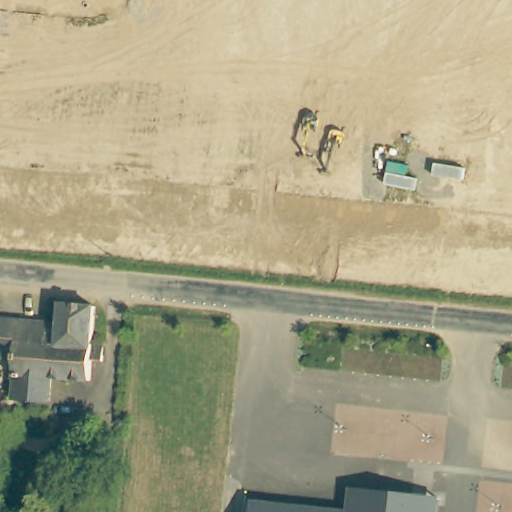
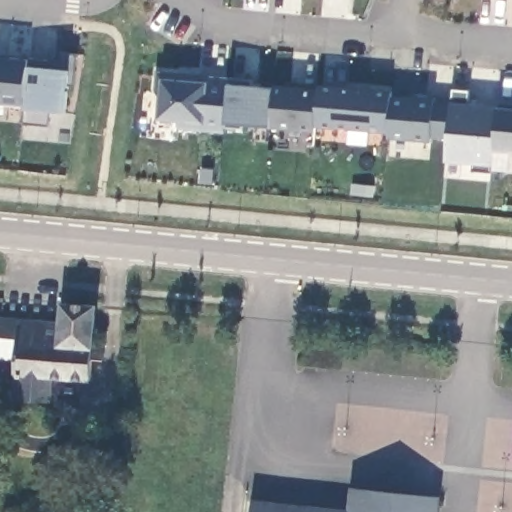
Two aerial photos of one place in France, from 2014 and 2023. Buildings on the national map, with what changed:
new [(61,61),(63,52),(80,55),(76,86),(68,86),(65,113),(54,112),(51,126),(26,124),(26,106),(24,106),(0,103),(0,56),(31,59),(61,61)]
new [(205,82),(203,75),(254,81),(257,86),(274,87),(275,84),(318,88),(320,84),(391,91),(391,96),(407,97),(407,95),(436,97),(436,100),(453,101),(455,91),(471,92),(469,103),(498,107),(512,109),(512,151),(494,149),(492,172),(473,172),(474,164),(448,162),(447,141),(432,137),(432,142),(389,139),(389,134),(315,127),(315,132),(273,127),(269,127),(228,123),(226,132),(183,129),(183,121),(161,120),(164,79),(205,82)]
unchanged [(13,401),(18,348),(9,347),(0,347),(0,317),(61,322),(62,303),(90,306),(95,307),(92,345),(104,346),(102,360),(91,359),(90,380),(51,377),(50,402),(33,402),(13,401)]
unchanged [(350,488),(441,498),(439,512),(252,512),(253,500),(347,510),(350,488)]

